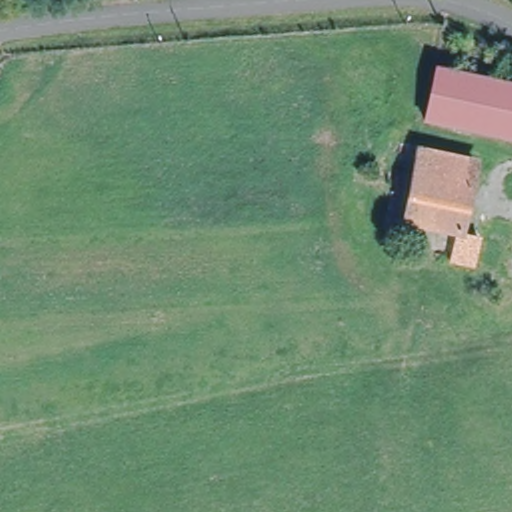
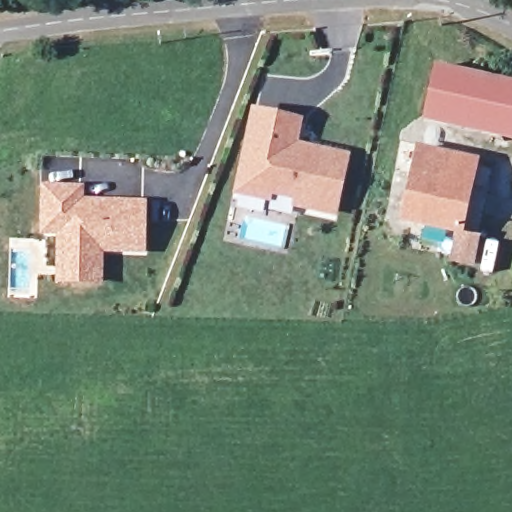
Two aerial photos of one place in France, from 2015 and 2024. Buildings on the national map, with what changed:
unchanged [(439,69),(512,86),(512,141),(427,121),(439,69)]
new [(336,218),(233,194),(252,108),(302,120),(297,144),(348,154),(336,218)]
unchanged [(405,221),(421,150),(476,163),(462,227),(460,233),(405,221)]
new [(85,185),(85,198),(147,199),(146,254),(104,253),(103,285),(55,284),(57,237),(40,235),(42,184),(85,185)]
demolished [(512,226),(512,255),(488,250),(477,248),(481,232),(483,220),(512,226)]

